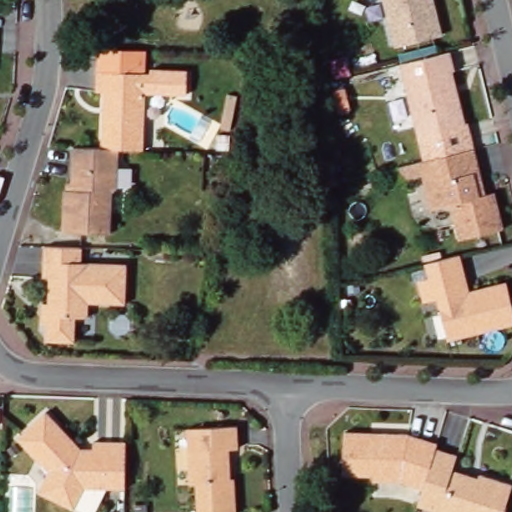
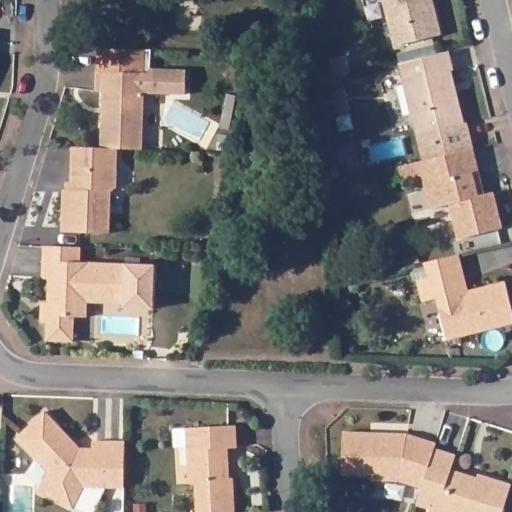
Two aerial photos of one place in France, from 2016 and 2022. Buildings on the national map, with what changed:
unchanged [(442,29),(395,41),(385,0),(435,0),(442,29)]
unchanged [(186,93),(144,92),(142,147),(118,147),(109,147),(104,147),(101,147),(102,90),(95,90),(97,49),(148,50),(148,70),(187,70),(186,93)]
unchanged [(472,122),(478,147),(435,158),(428,159),(422,135),(404,63),(404,62),(445,52),(454,50),(459,69),(456,70),(462,90),(470,123),(472,122)]
unchanged [(333,90),(345,87),(350,108),(338,111),(333,90)]
unchanged [(117,186),(111,191),(110,232),(62,230),(63,188),(71,188),(73,146),(101,147),(104,147),(109,147),(118,147),(117,186)]
unchanged [(508,227),(463,238),(454,203),(435,208),(427,176),(408,181),(404,166),(413,163),(423,161),(428,159),(435,158),(478,147),(484,171),(490,193),(499,191),(508,227)]
unchanged [(46,302),(52,302),(53,277),(47,277),(48,245),(82,246),(85,246),(85,261),(130,263),(129,302),(100,301),(92,301),(91,316),(79,315),(78,340),(51,339),(52,321),(45,321),(46,302)]
unchanged [(468,290),(506,281),(512,306),(512,323),(447,339),(437,297),(423,301),(417,279),(428,277),(424,262),(459,254),(465,276),(468,290)]
unchanged [(85,447),(98,447),(98,440),(130,440),(129,487),(89,486),(78,508),(43,490),(53,470),(21,437),(50,410),(85,447)]
unchanged [(235,512),(197,512),(195,482),(189,482),(186,427),(236,424),(237,446),(228,446),(229,463),(230,477),(233,477),(235,512)]
unchanged [(398,475),(371,473),(371,468),(342,467),(343,425),(407,427),(436,437),(435,442),(433,446),(422,482),(398,475)]
unchanged [(451,463),(478,472),(479,468),(511,478),(501,512),(446,512),(430,507),(431,503),(417,499),(422,482),(433,446),(435,442),(456,449),(451,463)]

